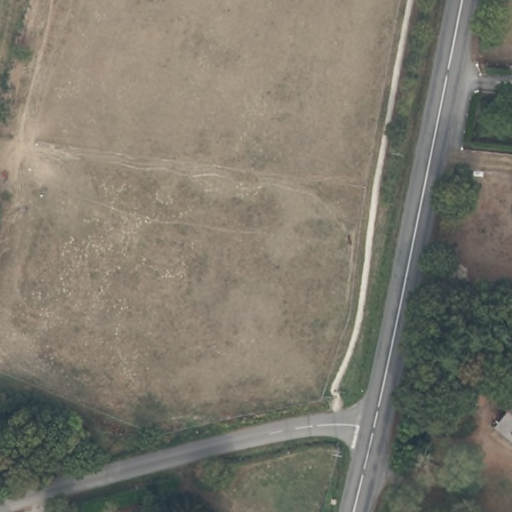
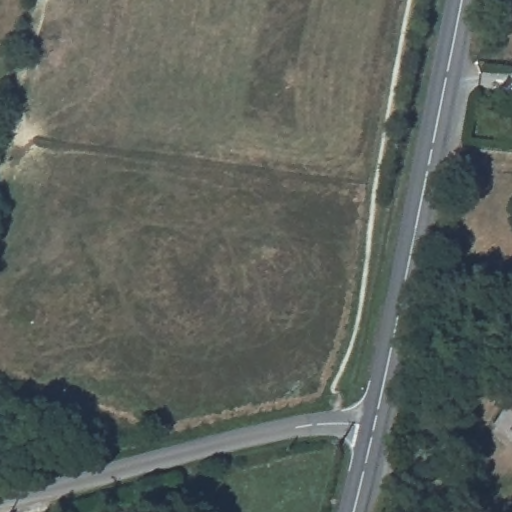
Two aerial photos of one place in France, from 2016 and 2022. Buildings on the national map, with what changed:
unchanged [(512,435),(502,427),(512,416),(512,435)]

